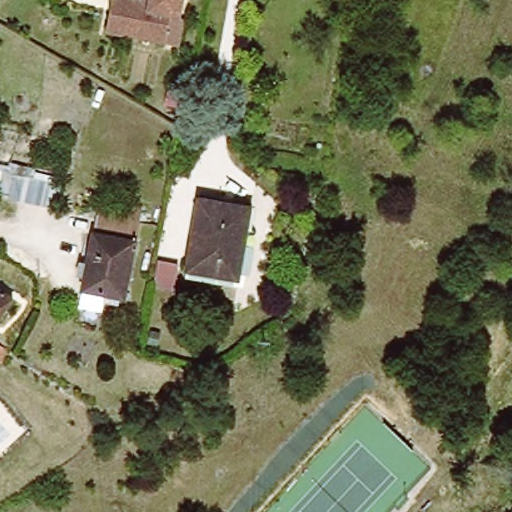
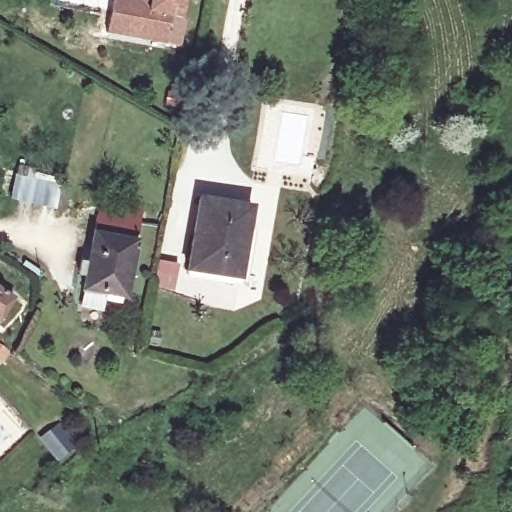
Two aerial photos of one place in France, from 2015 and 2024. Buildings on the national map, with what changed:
unchanged [(170,15),(164,43),(105,31),(111,0),(182,0),(179,17),(170,15)]
unchanged [(54,210),(10,199),(16,174),(60,185),(54,210)]
unchanged [(198,200),(250,209),(238,280),(187,272),(198,200)]
unchanged [(98,216),(142,218),(135,255),(147,258),(143,279),(131,277),(124,309),(81,301),(85,289),(76,287),(79,272),(87,274),(98,216)]
unchanged [(13,299),(0,319),(0,291),(13,299)]
unchanged [(4,359),(0,357),(0,345),(7,349),(10,351),(9,353),(4,359)]

